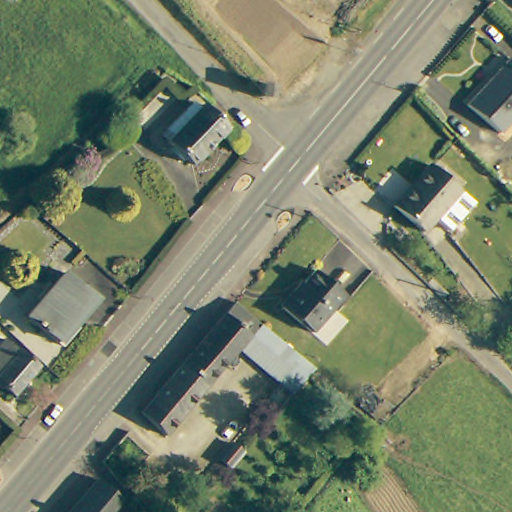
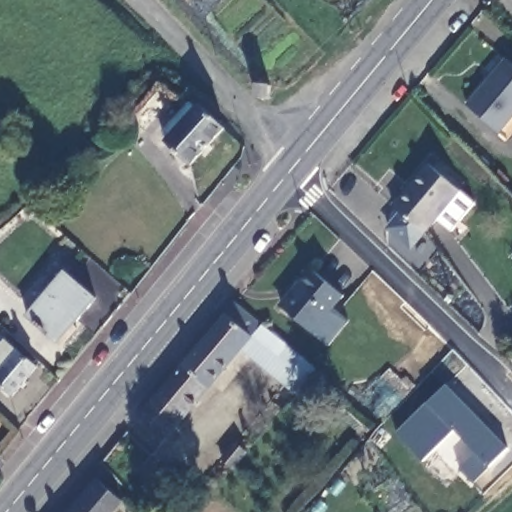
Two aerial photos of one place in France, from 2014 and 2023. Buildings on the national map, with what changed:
unchanged [(482,78),(502,53),(509,59),(512,62),(512,126),(502,138),(496,133),(461,103),(482,78)]
unchanged [(179,133),(171,126),(194,102),(200,109),(204,105),(227,130),(195,163),(172,140),(179,133)]
unchanged [(425,162),(471,203),(446,231),(431,217),(417,231),(387,205),(425,162)]
unchanged [(312,269),(342,294),(312,330),(282,305),(312,269)]
unchanged [(60,343),(30,316),(66,277),(96,303),(60,343)]
unchanged [(242,345),(231,358),(207,337),(239,299),(262,320),(242,345)]
unchanged [(288,343),(316,368),(295,392),(242,345),(262,320),(288,343)]
unchanged [(172,431),(146,409),(207,337),(231,358),(172,431)]
unchanged [(0,386),(0,351),(7,342),(39,369),(14,398),(0,386)]
new [(508,448),(488,467),(472,483),(459,469),(475,452),(453,430),(424,460),(397,431),(448,385),(508,448)]
unchanged [(249,427),(260,436),(247,452),(236,442),(249,427)]
unchanged [(124,499),(113,512),(69,512),(98,478),(124,499)]

